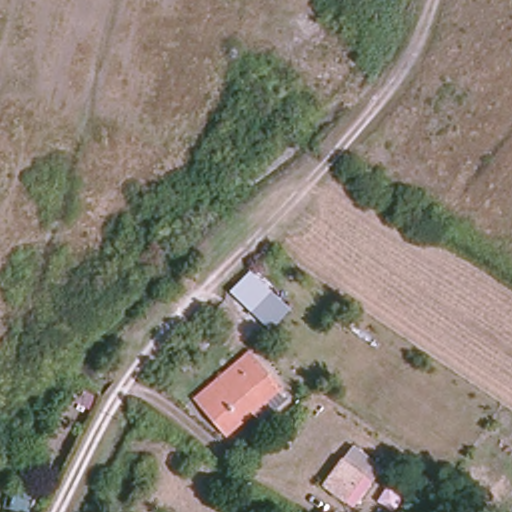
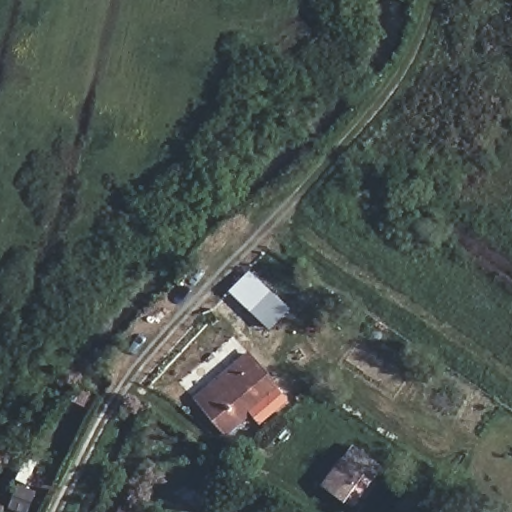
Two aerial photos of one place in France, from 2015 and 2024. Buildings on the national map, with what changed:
unchanged [(272,334),(232,292),(251,273),(293,310),(272,334)]
unchanged [(229,440),(197,398),(248,353),(283,390),(229,440)]
unchanged [(73,401),(78,389),(98,398),(93,411),(73,401)]
unchanged [(41,449),(46,438),(66,448),(62,459),(41,449)]
unchanged [(355,457),(377,471),(359,499),(338,485),(355,457)]

